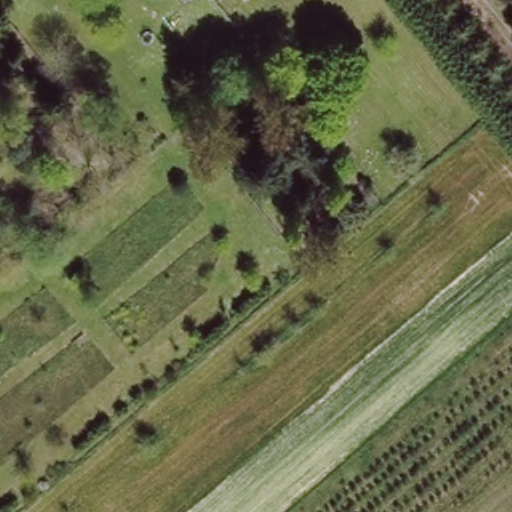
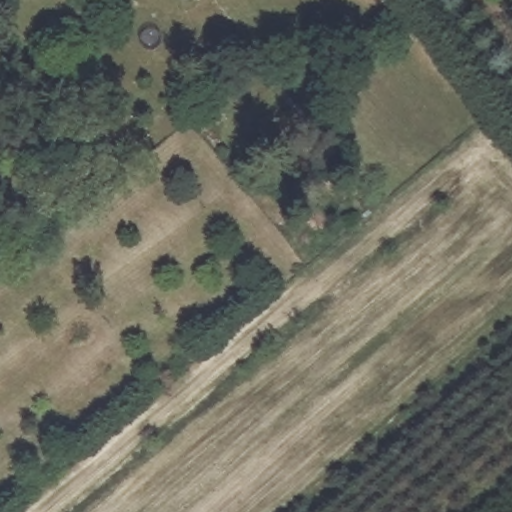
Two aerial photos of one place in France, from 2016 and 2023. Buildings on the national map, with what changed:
[]

